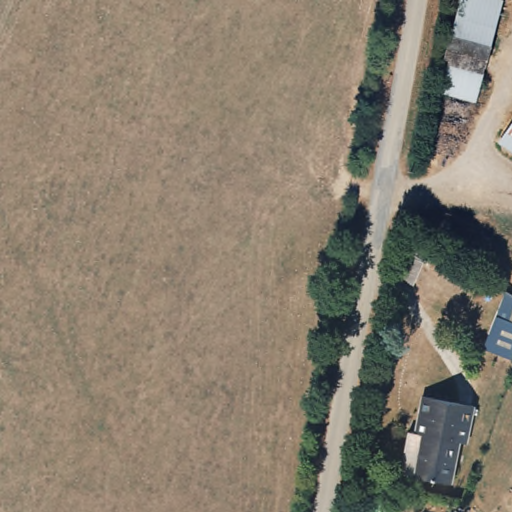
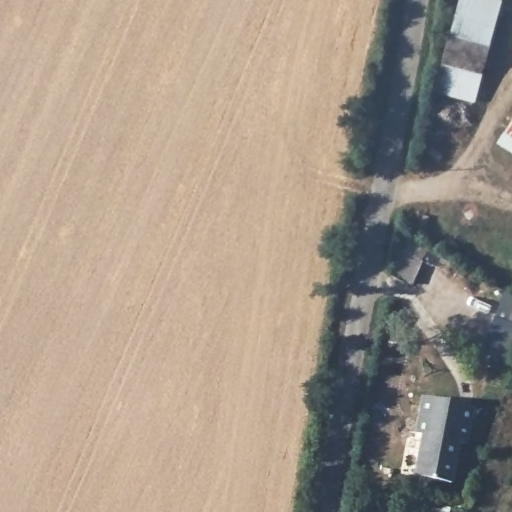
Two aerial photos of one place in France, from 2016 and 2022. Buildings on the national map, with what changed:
unchanged [(477,105),(434,92),(460,0),(487,0),(502,4),(477,105)]
unchanged [(512,124),(512,156),(496,144),(512,124)]
unchanged [(476,412),(467,450),(460,449),(451,490),(415,481),(424,440),(415,438),(424,400),(476,412)]

